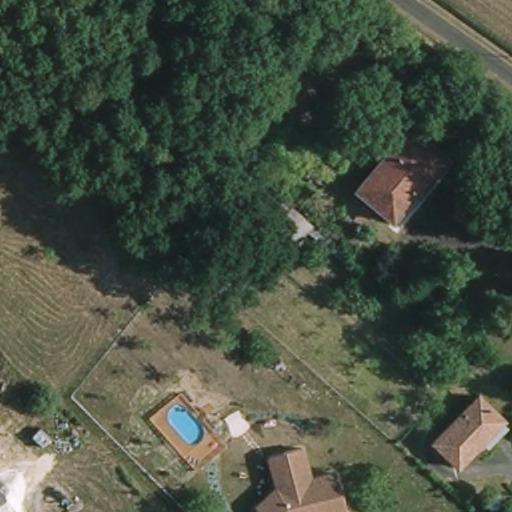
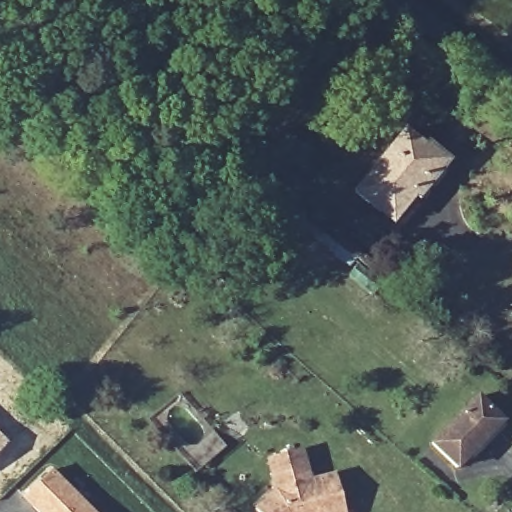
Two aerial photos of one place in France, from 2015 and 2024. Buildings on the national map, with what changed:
unchanged [(444,160),(394,220),(359,191),(409,131),(444,160)]
unchanged [(435,445),(480,397),(505,421),(460,468),(435,445)]
new [(7,443),(0,450),(0,435),(7,443)]
unchanged [(261,503),(275,488),(265,458),(281,453),(299,449),(309,481),(335,474),(345,512),(258,512),(255,509),(261,503)]
new [(49,467),(95,512),(36,512),(19,494),(49,467)]

